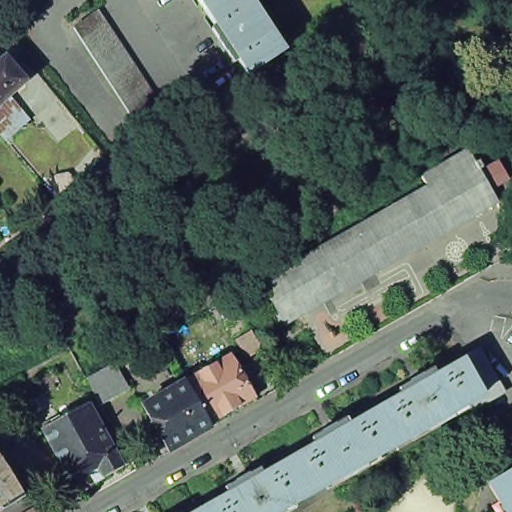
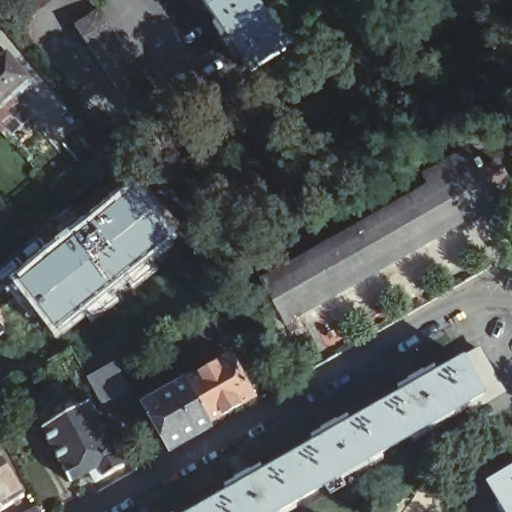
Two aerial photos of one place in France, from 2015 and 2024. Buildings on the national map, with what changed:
unchanged [(214,5),(211,0),(221,0),(214,5)]
unchanged [(290,44),(256,67),(238,41),(234,44),(226,33),(231,30),(214,5),(221,0),(261,0),(290,44)]
unchanged [(140,123),(132,111),(124,99),(116,87),(110,77),(108,75),(100,62),(92,50),(87,43),(84,38),(75,25),(91,15),(100,9),(108,22),(117,34),(125,46),(132,58),(139,68),(141,70),(149,82),(157,95),(162,102),(165,107),(174,120),(158,130),(149,136),(140,123)]
unchanged [(0,118),(0,44),(3,41),(12,51),(32,74),(16,88),(36,111),(12,132),(0,118)]
unchanged [(508,202),(295,324),(271,282),(439,187),(432,176),(479,150),(486,163),(489,161),(492,168),(490,170),(508,202)]
new [(64,236),(135,182),(177,239),(56,339),(11,282),(64,236)]
unchanged [(253,331),(263,348),(249,357),(238,339),(253,331)]
unchanged [(187,380),(232,355),(256,396),(210,423),(186,381),(187,380)]
unchanged [(405,392),(411,388),(417,385),(420,390),(458,368),(475,359),(499,402),(491,407),(467,421),(462,414),(392,455),(371,418),(408,397),(405,392)]
unchanged [(121,366),(135,393),(107,408),(92,383),(121,366)]
unchanged [(148,426),(154,423),(144,405),(186,381),(210,423),(212,427),(170,451),(158,429),(152,433),(148,426)]
unchanged [(91,476),(71,487),(62,472),(64,472),(42,433),(90,407),(125,471),(104,482),(96,486),(91,476)]
unchanged [(321,447),(318,441),(330,435),(332,440),(371,418),(392,455),(305,504),(284,468),(321,447)]
unchanged [(4,512),(0,512),(0,450),(30,496),(4,512)]
unchanged [(232,491),(233,490),(243,484),(247,489),(284,468),(305,504),(291,512),(207,512),(235,496),(232,491)]
unchanged [(511,512),(495,485),(512,474),(512,512),(511,512)]
unchanged [(42,512),(29,512),(39,506),(42,512)]

